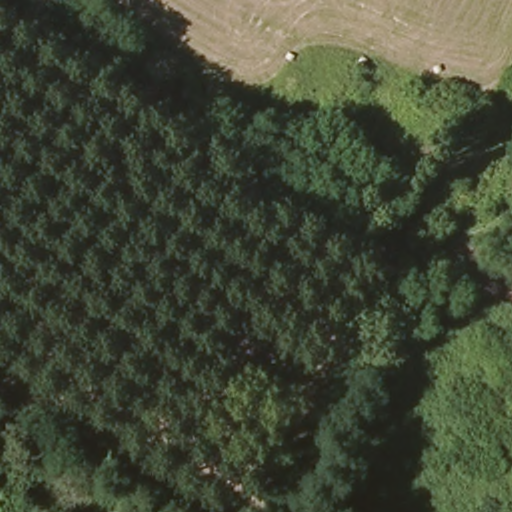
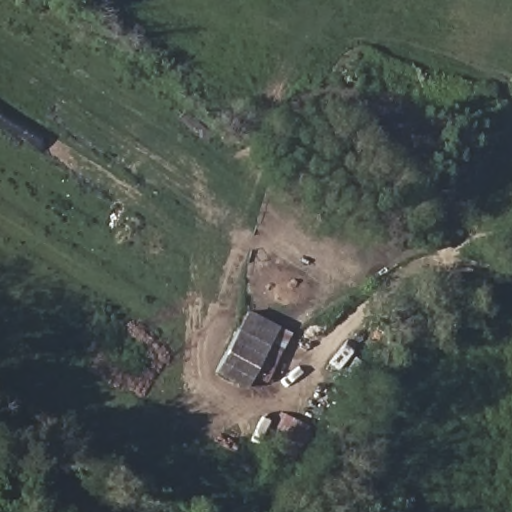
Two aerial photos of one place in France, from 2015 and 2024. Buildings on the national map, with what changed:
new [(253,375),(245,390),(214,371),(247,310),(280,326),(292,334),(266,382),(253,375)]

